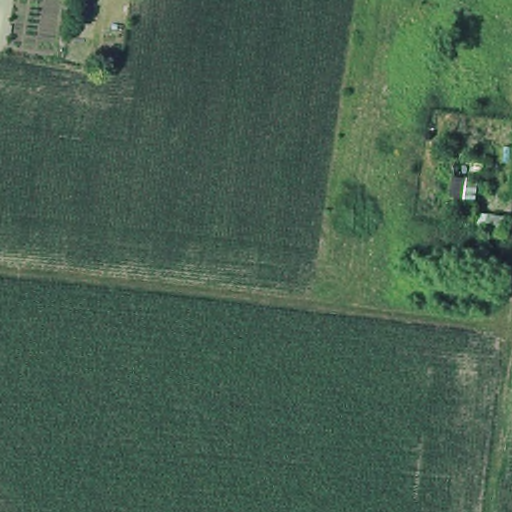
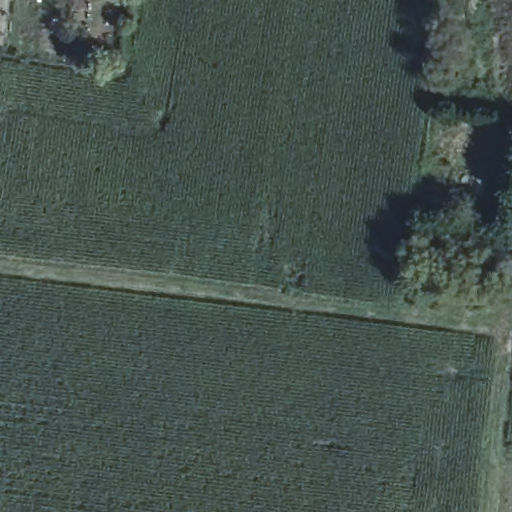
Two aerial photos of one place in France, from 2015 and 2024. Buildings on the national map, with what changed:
unchanged [(472,212),(480,212),(480,206),(502,207),(502,235),(471,228),(472,212)]

